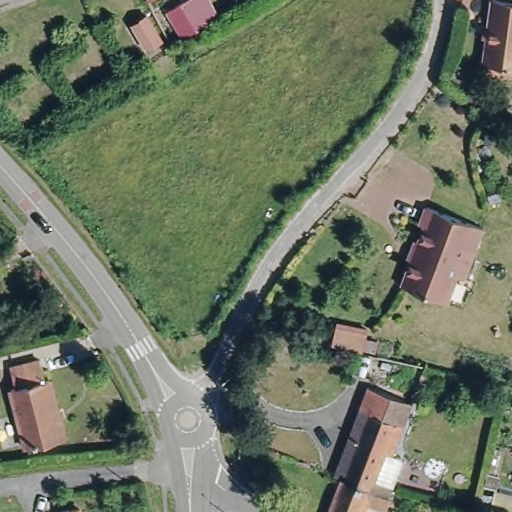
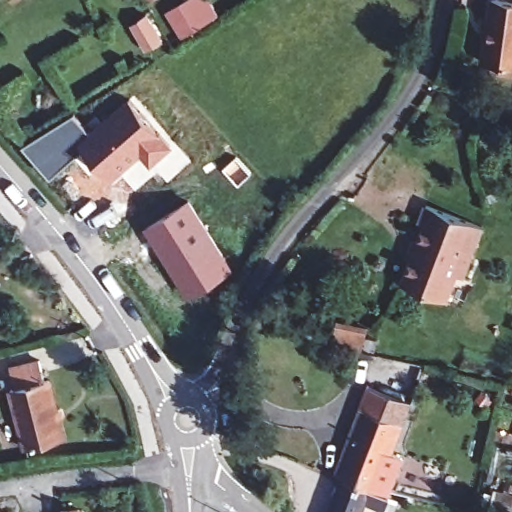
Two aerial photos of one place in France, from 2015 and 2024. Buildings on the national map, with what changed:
unchanged [(178,0),(194,0),(206,21),(179,39),(162,10),(178,0)]
unchanged [(490,0),(497,0),(512,2),(512,66),(480,62),(490,0)]
new [(130,24),(148,14),(163,40),(145,51),(130,24)]
new [(90,133),(129,99),(174,147),(152,167),(141,157),(111,182),(83,150),(51,178),(22,146),(74,115),(90,133)]
new [(234,270),(188,299),(142,229),(190,200),(234,270)]
unchanged [(455,273),(445,300),(401,283),(424,223),(420,222),(425,205),(480,227),(460,276),(455,273)]
unchanged [(327,337),(332,317),(362,323),(357,343),(327,337)]
unchanged [(8,366),(37,357),(42,377),(48,376),(65,435),(27,446),(11,387),(14,386),(8,366)]
unchanged [(388,433),(368,485),(368,487),(330,472),(348,420),(361,382),(388,391),(402,396),(392,423),(388,433)]
unchanged [(357,512),(326,512),(338,480),(362,487),(367,489),(370,490),(371,492),(370,496),(366,498),(362,501),(357,512)]
unchanged [(82,510),(82,512),(65,512),(65,511),(75,510),(82,510)]

